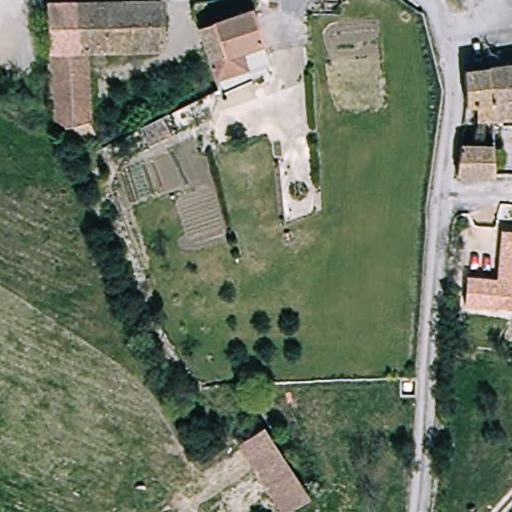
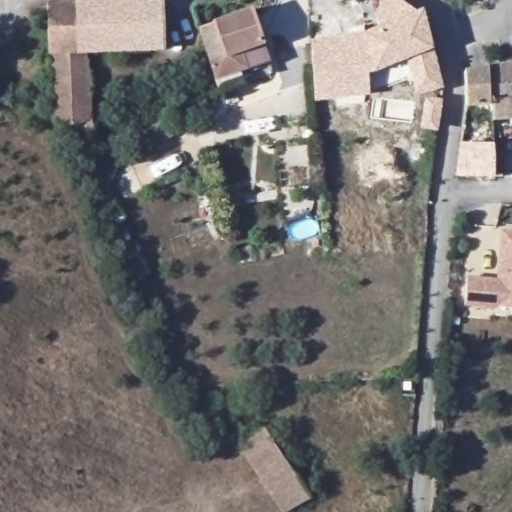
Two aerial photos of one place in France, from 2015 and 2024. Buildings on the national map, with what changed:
new [(406,61),(374,73),(368,75),(370,95),(314,101),(309,41),(364,32),(380,26),(374,21),(379,0),(400,0),(416,11),(423,9),(434,50),(443,89),(416,98),(406,61)]
unchanged [(165,51),(90,55),(92,111),(98,128),(82,134),(75,135),(71,122),(57,121),(55,114),(49,9),(165,3),(165,51)]
unchanged [(271,78),(255,84),(246,54),(211,68),(198,33),(251,15),(271,78)]
unchanged [(487,68),(512,64),(512,119),(496,121),(487,68)]
unchanged [(481,111),(473,111),(473,118),(466,118),(463,71),(487,68),(496,121),(481,121),(481,111)]
unchanged [(458,176),(462,146),(495,145),(494,176),(458,176)]
unchanged [(466,277),(496,279),(500,233),(512,234),(512,311),(465,307),(466,277)]
unchanged [(266,435),(308,506),(298,512),(278,512),(240,450),(266,435)]

